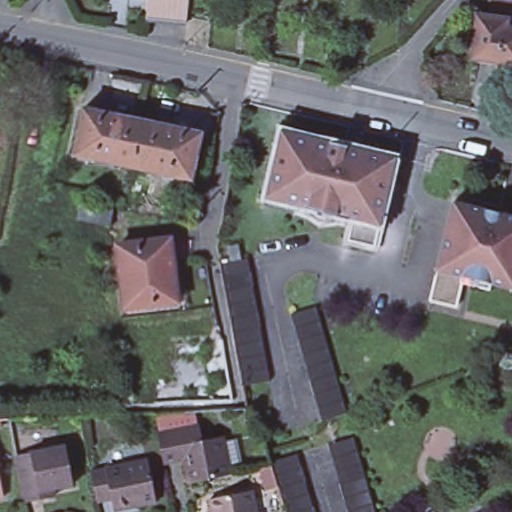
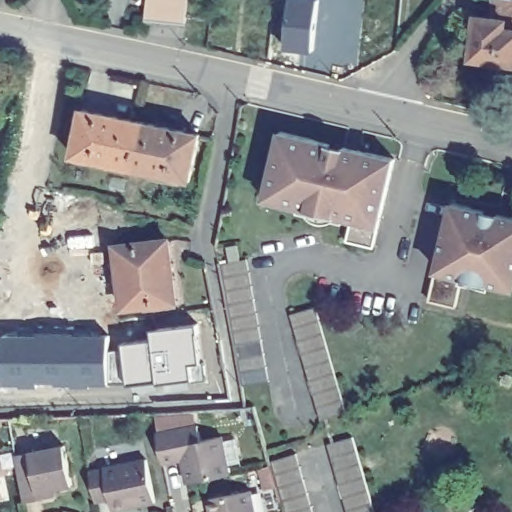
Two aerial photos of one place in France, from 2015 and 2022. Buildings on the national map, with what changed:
unchanged [(185,22),(145,17),(147,0),(187,0),(185,22)]
new [(314,2),(309,54),(280,53),(286,0),(300,0),(314,2)]
unchanged [(477,20),(492,21),(495,3),(512,5),(512,67),(472,62),(477,20)]
unchanged [(198,181),(67,161),(81,104),(205,127),(198,181)]
unchanged [(386,224),(379,249),(347,242),(348,217),(265,195),(278,129),(401,157),(386,224)]
unchanged [(457,305),(431,297),(455,197),(512,212),(512,290),(462,280),(457,305)]
new [(81,208),(112,212),(111,226),(111,229),(80,225),(81,208)]
unchanged [(185,305),(118,312),(112,239),(173,234),(185,305)]
unchanged [(222,265),(229,263),(224,247),(239,243),(243,261),(251,260),(271,380),(247,383),(222,265)]
unchanged [(320,308),(350,412),(322,417),(293,317),(320,308)]
new [(105,337),(105,353),(120,352),(120,347),(150,345),(148,333),(193,327),(200,382),(155,386),(153,383),(125,386),(124,384),(105,384),(105,387),(0,388),(0,387),(0,340),(105,337)]
unchanged [(200,423),(207,437),(226,435),(233,472),(186,482),(180,463),(164,466),(157,432),(200,423)]
unchanged [(379,512),(351,512),(331,442),(357,437),(379,512)]
unchanged [(75,487),(23,498),(15,455),(65,441),(75,487)]
unchanged [(319,512),(285,512),(272,460),(302,452),(319,512)]
unchanged [(158,503),(117,510),(114,501),(94,501),(88,466),(148,457),(158,503)]
unchanged [(0,497),(0,467),(6,496),(0,497)]
unchanged [(260,512),(208,512),(206,501),(256,488),(260,512)]

